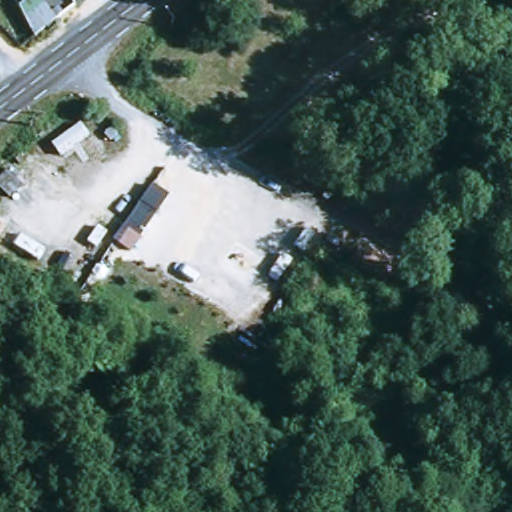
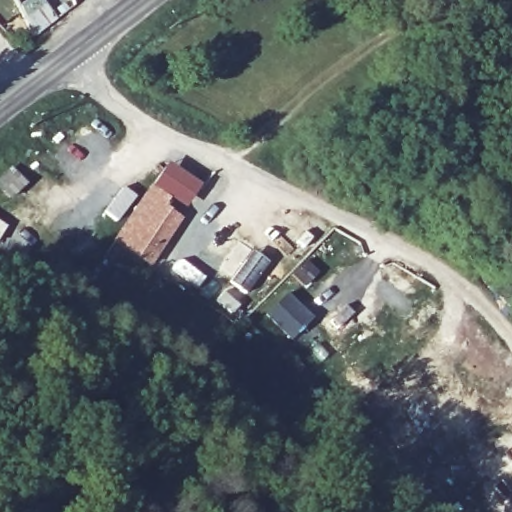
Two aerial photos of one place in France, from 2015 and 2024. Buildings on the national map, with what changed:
new [(150,267),(113,241),(167,165),(200,186),(185,208),(170,199),(164,207),(181,220),(150,267)]
new [(9,230),(16,226),(38,243),(22,262),(0,244),(0,223),(9,230)]
new [(286,295),(311,320),(290,342),(265,317),(286,295)]

